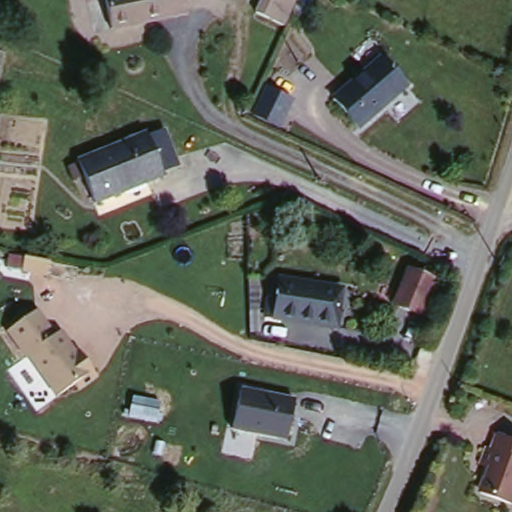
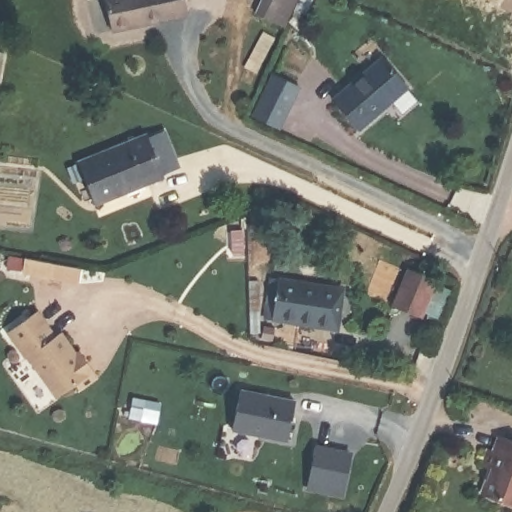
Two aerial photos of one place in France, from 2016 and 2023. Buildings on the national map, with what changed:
unchanged [(189,13),(114,33),(107,0),(186,0),(189,13)]
unchanged [(291,25),(267,18),(274,0),(300,0),(291,25)]
unchanged [(411,77),(365,124),(335,97),(382,50),(411,77)]
unchanged [(150,133),(168,174),(98,202),(80,160),(150,133)]
unchanged [(434,278),(423,313),(394,306),(408,270),(434,278)]
unchanged [(341,286),(355,288),(353,300),(348,325),(276,315),(284,277),(341,286)]
unchanged [(5,332),(38,310),(56,335),(61,331),(96,379),(79,392),(73,383),(54,398),(5,332)]
unchanged [(240,389),(295,401),(286,443),(231,431),(240,389)]
new [(131,395),(161,400),(157,424),(128,419),(131,395)]
unchanged [(512,504),(481,494),(491,469),(482,466),(488,448),(493,450),(499,435),(512,439),(512,504)]
new [(353,450),(343,495),(308,488),(317,445),(353,450)]

